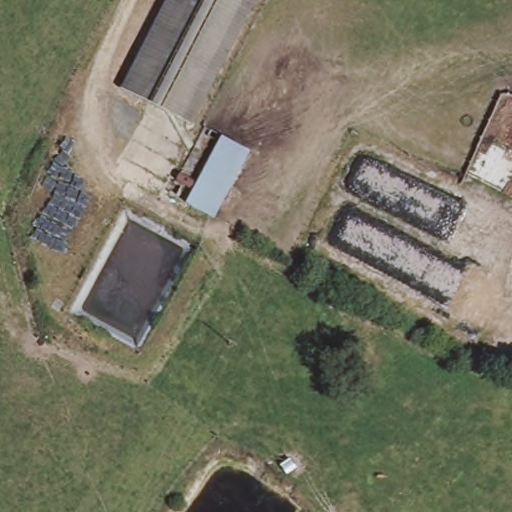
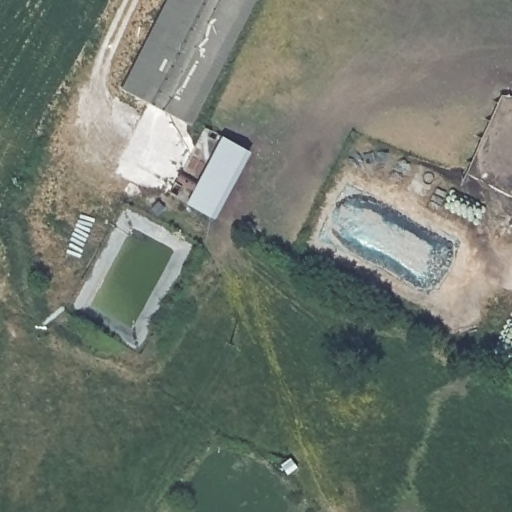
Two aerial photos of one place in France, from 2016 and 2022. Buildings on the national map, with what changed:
unchanged [(193,126),(120,88),(165,0),(257,0),(193,126)]
unchanged [(212,215),(189,204),(224,136),(246,148),(212,215)]

